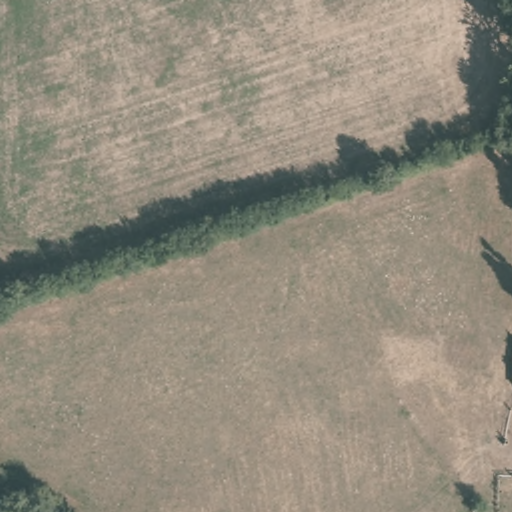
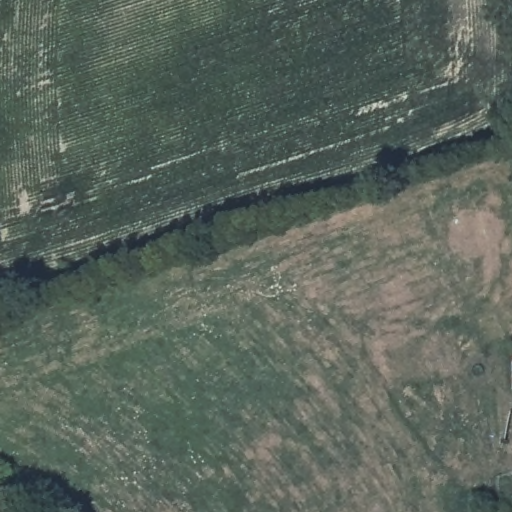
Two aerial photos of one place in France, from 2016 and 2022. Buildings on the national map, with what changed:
unchanged [(508,359),(512,358),(512,392),(510,393),(508,359)]

